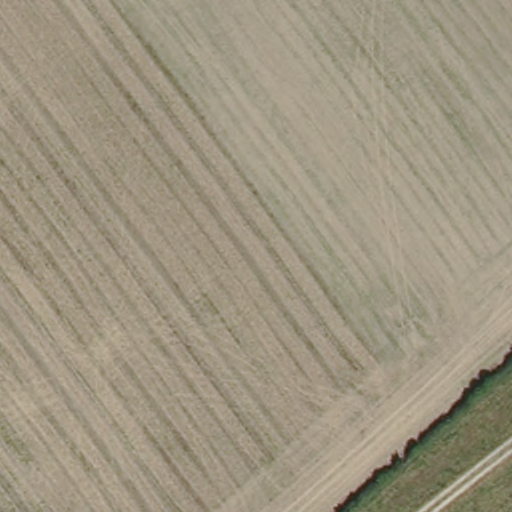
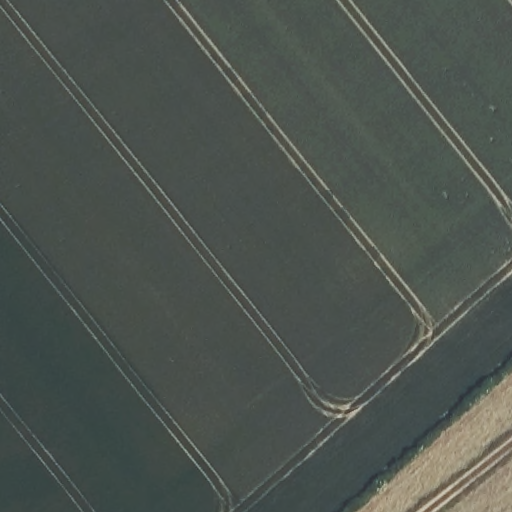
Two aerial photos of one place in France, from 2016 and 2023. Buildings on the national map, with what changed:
[]

